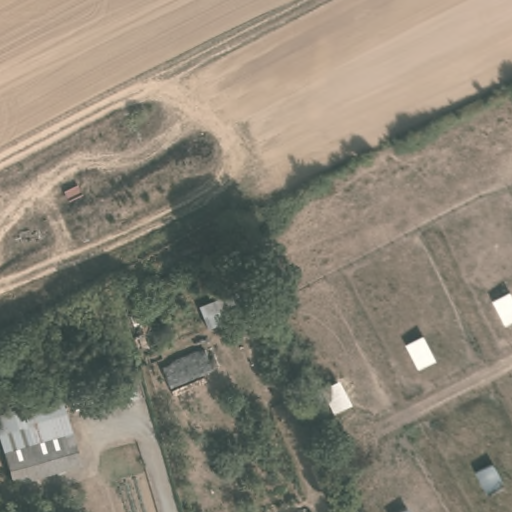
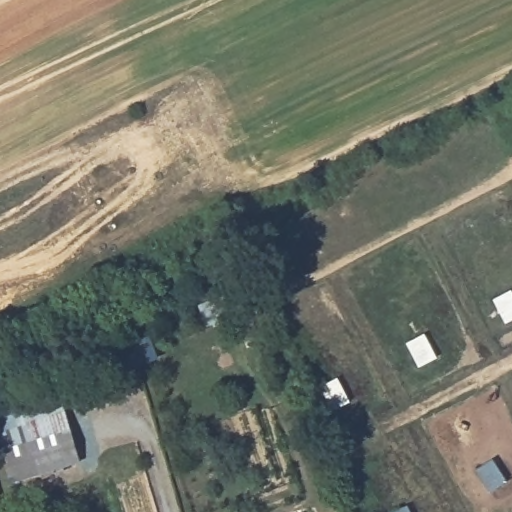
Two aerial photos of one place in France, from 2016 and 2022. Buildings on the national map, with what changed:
unchanged [(222,326),(216,310),(243,300),(249,317),(222,326)]
unchanged [(21,480),(12,448),(28,444),(23,421),(65,412),(71,433),(79,463),(21,480)]

